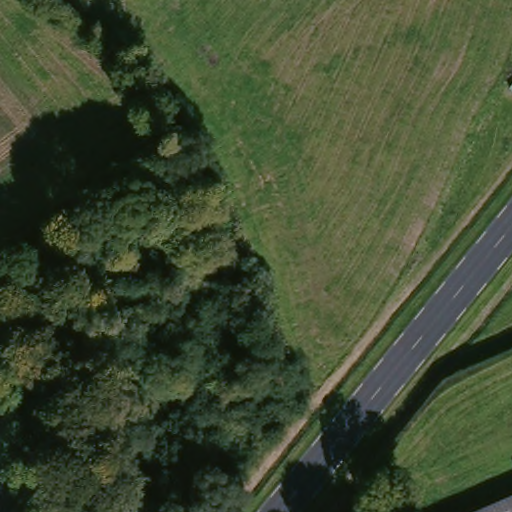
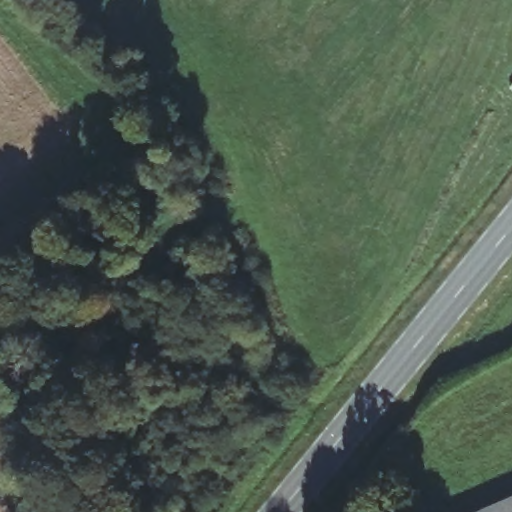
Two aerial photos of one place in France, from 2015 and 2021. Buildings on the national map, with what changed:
unchanged [(512,512),(482,512),(512,499),(512,512)]

